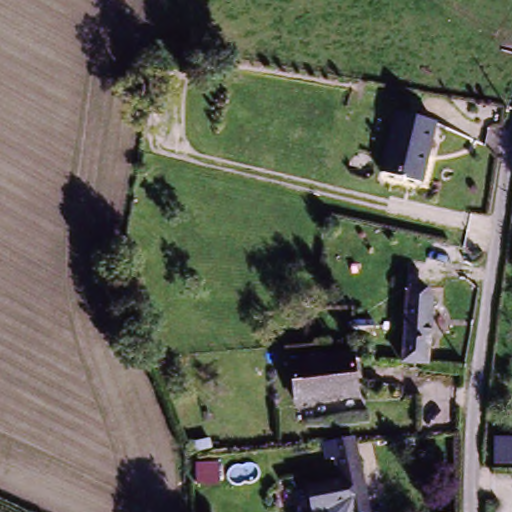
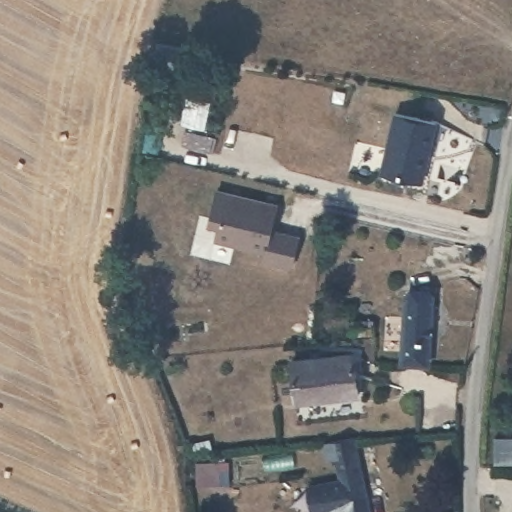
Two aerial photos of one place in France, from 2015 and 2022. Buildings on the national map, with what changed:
unchanged [(207,77),(165,71),(170,45),(210,52),(207,77)]
unchanged [(376,170),(390,113),(434,123),(419,181),(376,170)]
new [(300,239),(294,268),(264,262),(265,254),(217,244),(220,224),(210,222),(217,194),(277,207),(272,232),(300,239)]
unchanged [(405,365),(409,287),(436,290),(430,367),(405,365)]
unchanged [(294,403),(290,356),(359,350),(362,397),(294,403)]
unchanged [(367,512),(316,512),(310,487),(339,480),(334,457),(325,459),(322,447),(350,440),(367,512)]
new [(494,443),(512,443),(512,466),(494,466),(494,443)]

